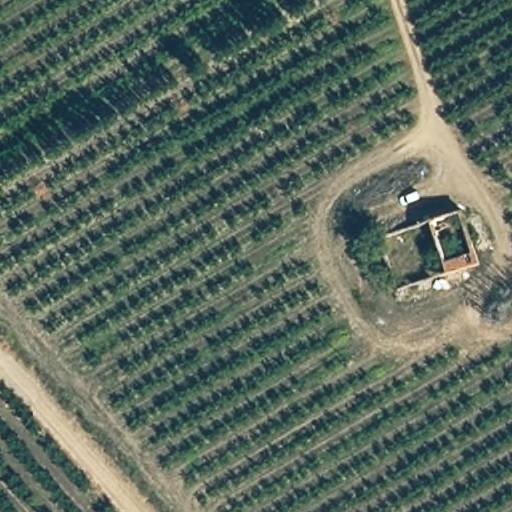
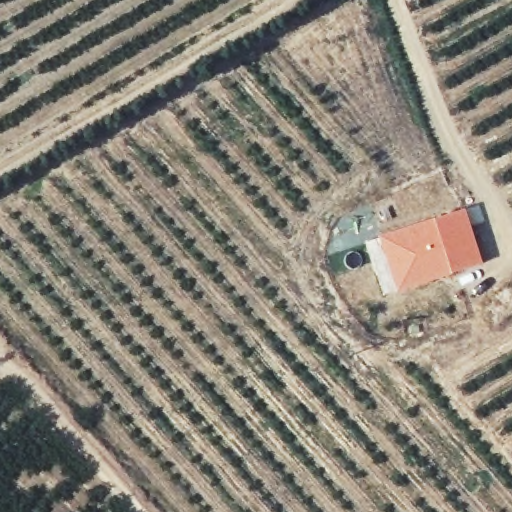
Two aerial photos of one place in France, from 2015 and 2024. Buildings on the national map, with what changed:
new [(483,263),(397,293),(380,238),(465,208),(483,263)]

